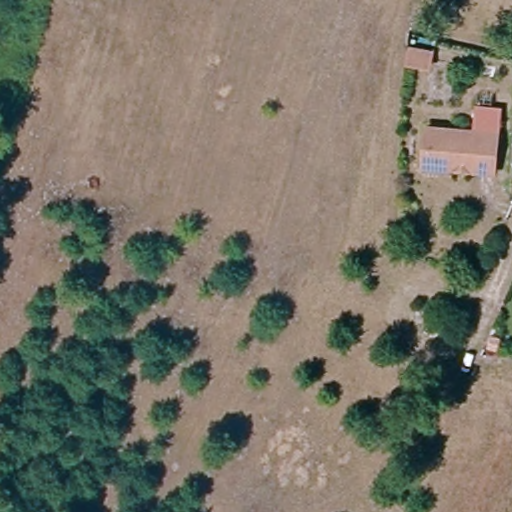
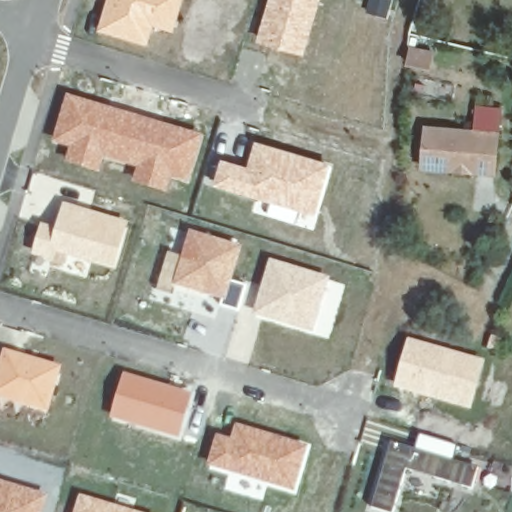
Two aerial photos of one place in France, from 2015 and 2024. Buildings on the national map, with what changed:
new [(156,25),(149,45),(100,30),(108,0),(184,0),(175,31),(156,25)]
new [(257,40),(269,0),(320,0),(304,55),(257,40)]
new [(189,183),(172,178),(168,194),(132,183),(137,167),(105,157),(100,174),(66,163),(70,147),(53,142),(67,94),(203,135),(189,183)]
unchanged [(426,127),(497,132),(493,171),(423,167),(426,127)]
new [(316,215),(215,185),(223,160),(249,167),(256,141),(332,164),(316,215)]
new [(114,270),(58,252),(55,261),(33,255),(42,223),(56,227),(64,202),(129,222),(114,270)]
new [(232,282),(247,286),(239,312),(221,306),(223,300),(174,285),(190,230),(243,245),(232,282)]
new [(269,320),(267,307),(258,297),(270,258),(331,277),(315,330),(310,328),(269,320)]
new [(472,410),(394,388),(408,338),(486,360),(472,410)]
new [(0,398),(0,363),(4,350),(61,365),(49,411),(0,398)]
new [(180,438),(111,418),(124,373),(193,393),(180,438)]
new [(297,490),(233,473),(224,457),(235,423),(308,445),(297,490)]
new [(412,450),(480,467),(473,489),(407,469),(394,512),(386,512),(372,508),(391,441),(413,448),(412,450)]
new [(42,512),(0,512),(0,479),(49,494),(42,512)]
new [(80,495),(139,512),(75,512),(80,495)]

